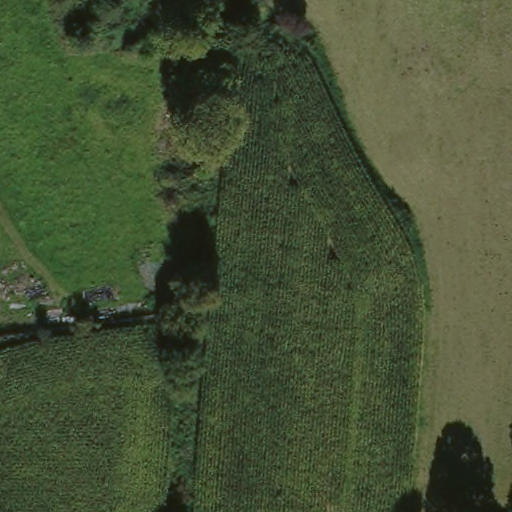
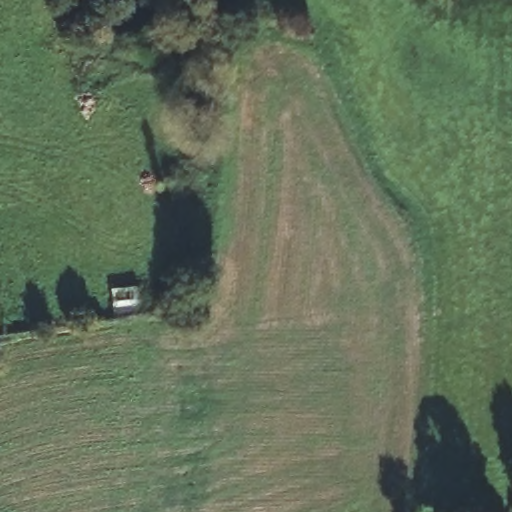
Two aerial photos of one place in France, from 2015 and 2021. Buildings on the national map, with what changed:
[]

